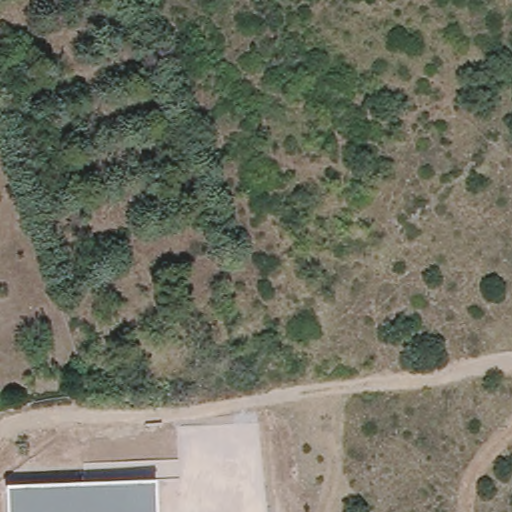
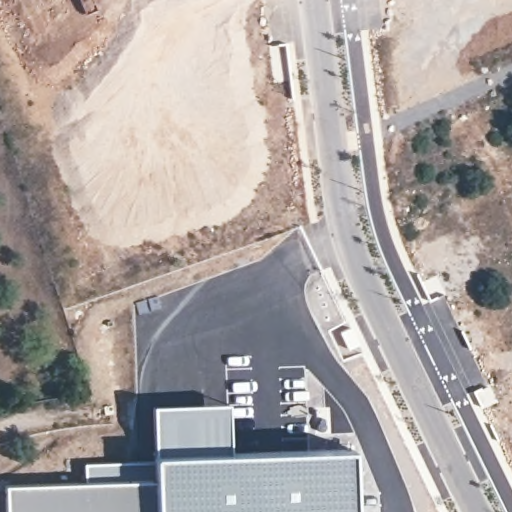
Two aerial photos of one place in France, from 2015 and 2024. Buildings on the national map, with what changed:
new [(84,481),(84,463),(154,456),(153,405),(227,401),(228,452),(351,447),(353,512),(156,512),(155,479),(84,481)]
unchanged [(7,512),(6,484),(155,479),(156,512),(7,512)]

